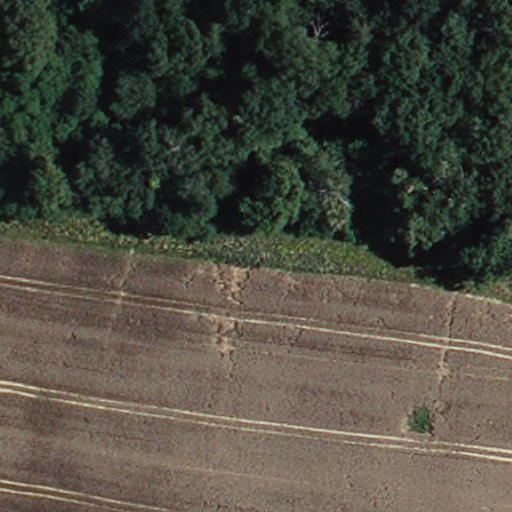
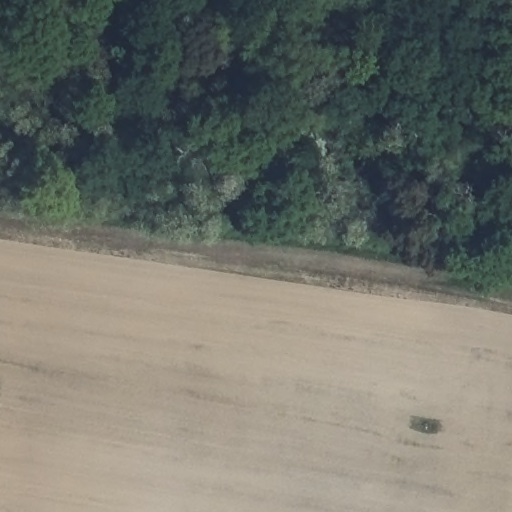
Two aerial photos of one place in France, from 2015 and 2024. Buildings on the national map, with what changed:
[]

